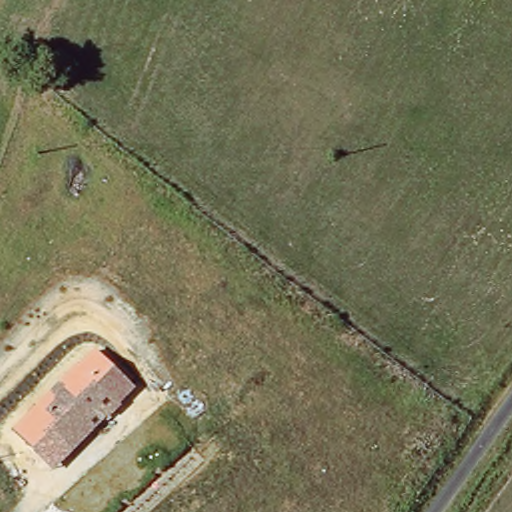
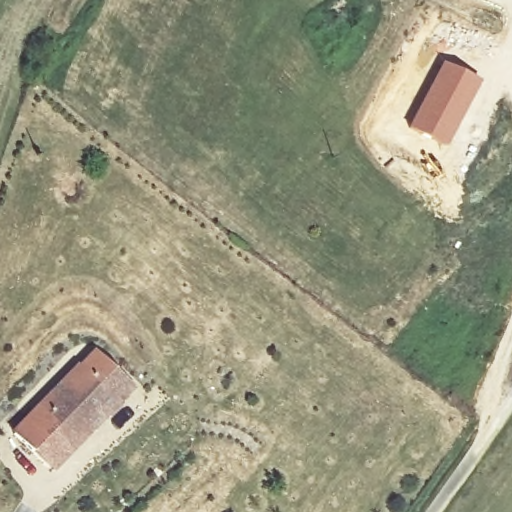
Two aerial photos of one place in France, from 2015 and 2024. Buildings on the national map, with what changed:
new [(444,146),(411,128),(445,64),(478,81),(444,146)]
unchanged [(83,366),(128,410),(115,423),(102,410),(66,455),(31,418),(83,366)]

